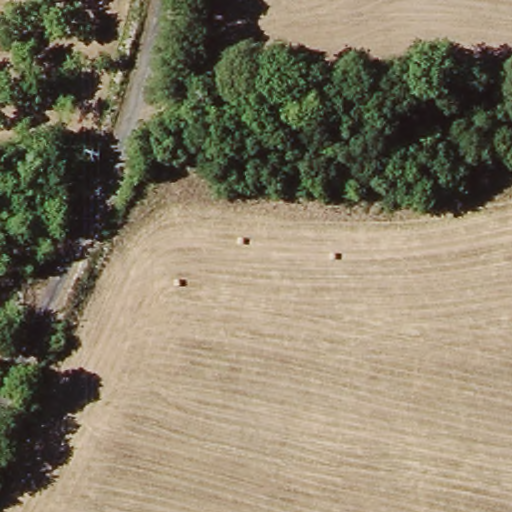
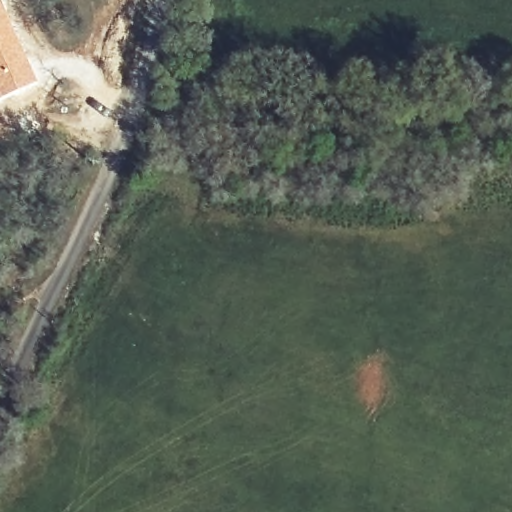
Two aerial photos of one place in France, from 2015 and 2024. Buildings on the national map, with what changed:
new [(39,81),(0,98),(0,0),(1,0),(39,81)]

